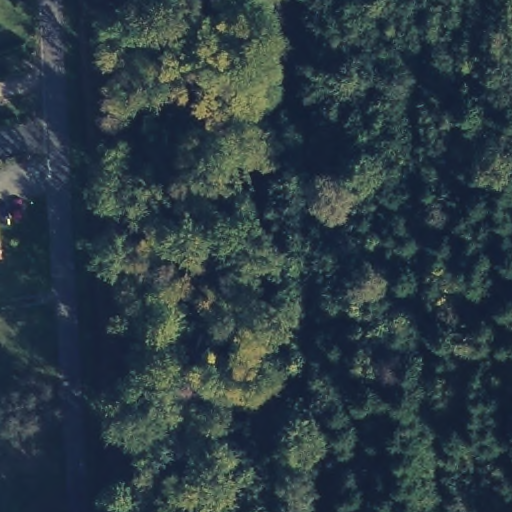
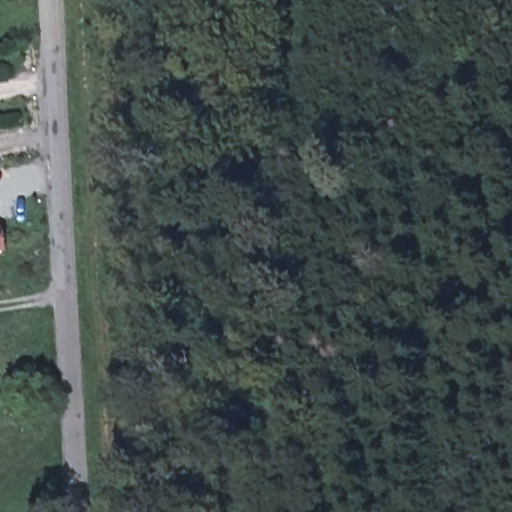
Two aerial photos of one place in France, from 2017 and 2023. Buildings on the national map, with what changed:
unchanged [(0,231),(2,231),(5,255),(0,256),(0,231)]

